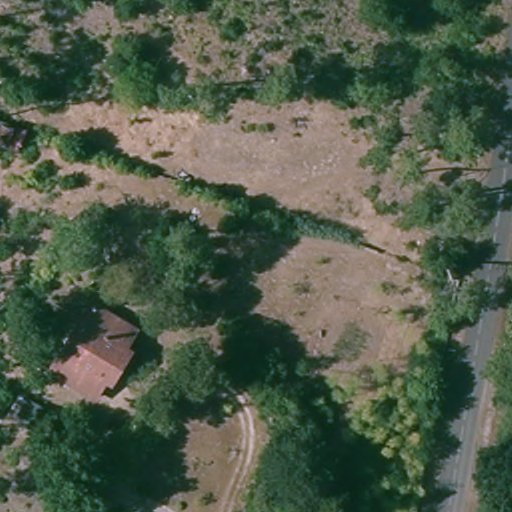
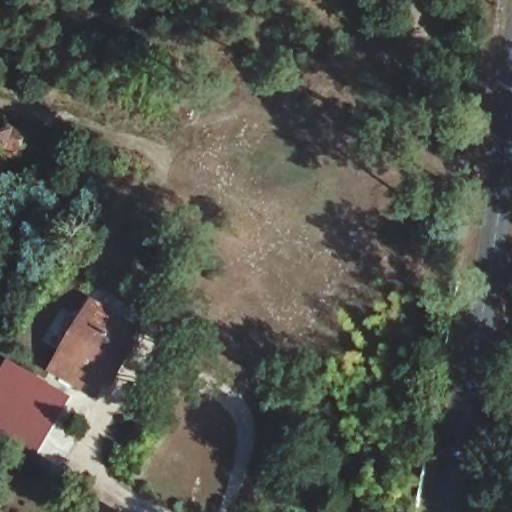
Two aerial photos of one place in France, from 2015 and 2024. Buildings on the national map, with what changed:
unchanged [(38,99),(0,87),(0,50),(48,66),(38,99)]
unchanged [(75,313),(133,337),(104,399),(48,377),(75,313)]
new [(72,396),(37,456),(0,432),(0,373),(8,358),(72,396)]

